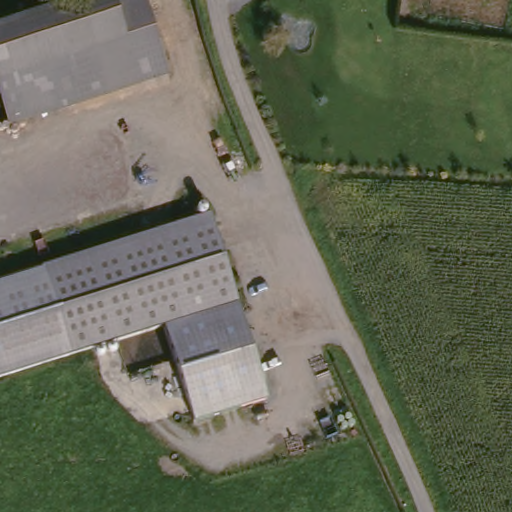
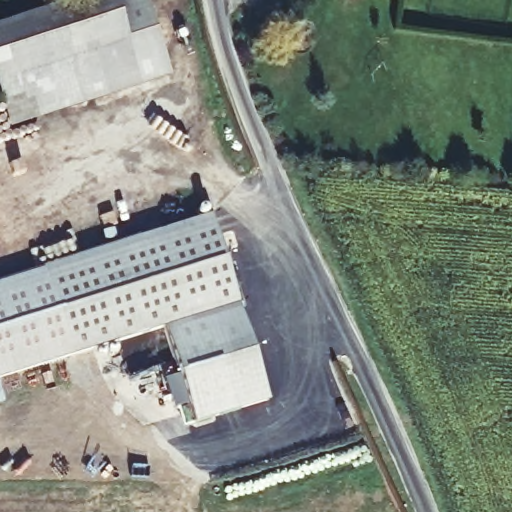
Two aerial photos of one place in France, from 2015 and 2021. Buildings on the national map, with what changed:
unchanged [(0,107),(0,17),(55,0),(146,0),(169,70),(120,86),(6,125),(0,107)]
unchanged [(207,216),(235,305),(163,327),(67,356),(40,266),(207,216)]
unchanged [(67,356),(0,377),(0,279),(40,266),(67,356)]
unchanged [(235,305),(269,401),(192,423),(163,327),(235,305)]

